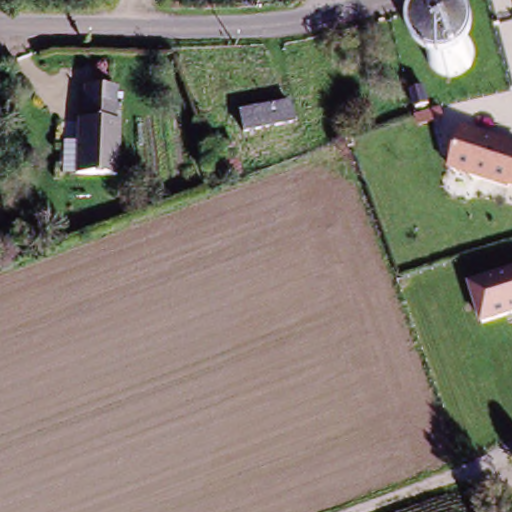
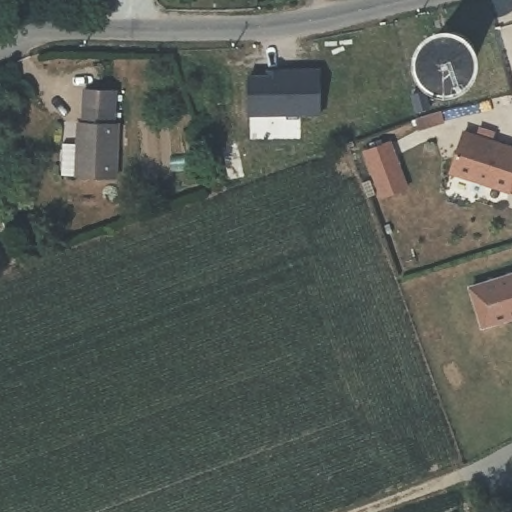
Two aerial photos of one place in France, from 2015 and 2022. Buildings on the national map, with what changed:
new [(284,80),(274,79),(274,74),(284,74),(327,75),(325,120),(253,117),(254,79),(284,80)]
unchanged [(63,144),(78,144),(78,121),(84,121),(84,90),(113,90),(113,122),(117,122),(117,175),(63,175),(63,144)]
demolished [(290,104),(293,125),(240,131),(238,111),(290,104)]
unchanged [(512,198),(456,180),(471,132),(512,146),(512,198)]
new [(389,145),(407,192),(383,201),(366,154),(389,145)]
unchanged [(468,286),(512,273),(512,319),(481,328),(468,286)]

